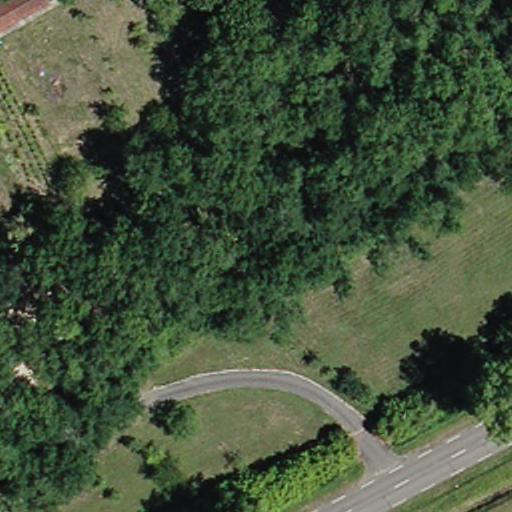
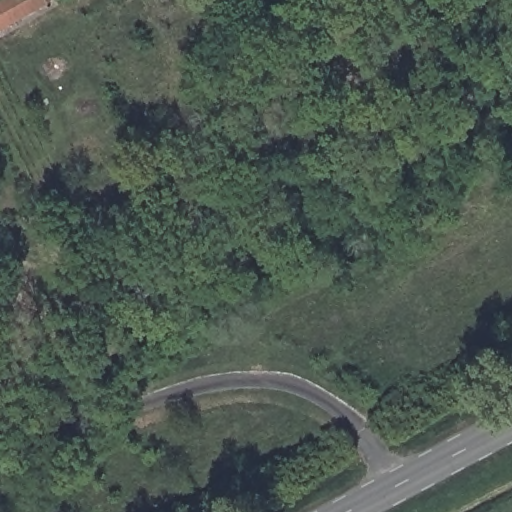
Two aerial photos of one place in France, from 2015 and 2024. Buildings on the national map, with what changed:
unchanged [(0,5),(8,0),(65,0),(5,32),(0,24),(0,5)]

